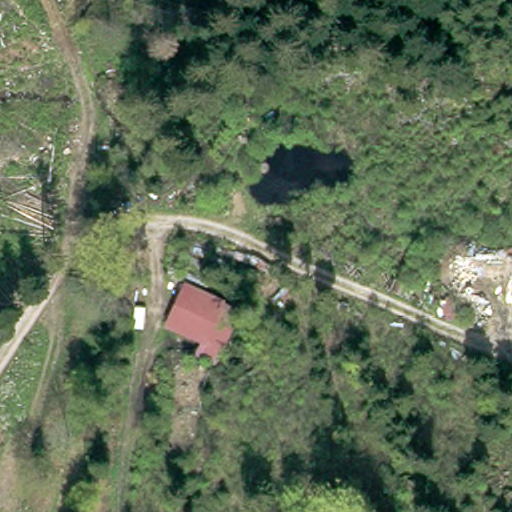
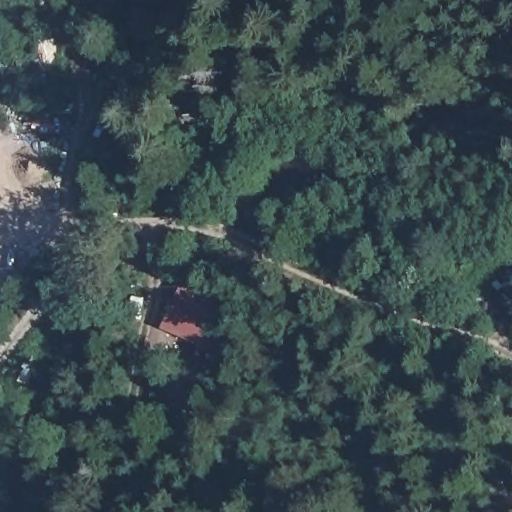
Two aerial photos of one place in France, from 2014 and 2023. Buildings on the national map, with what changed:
unchanged [(185,281),(246,306),(228,350),(167,325),(185,281)]

